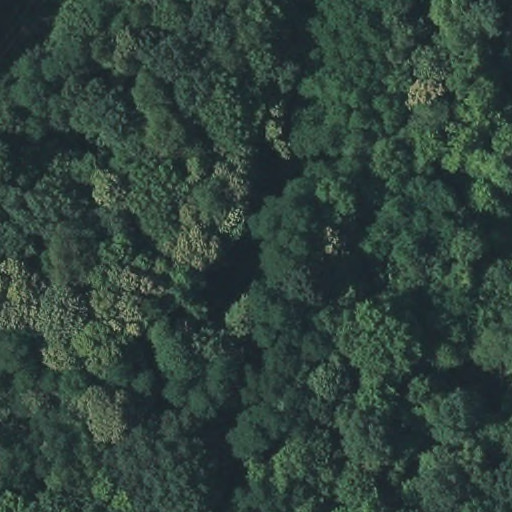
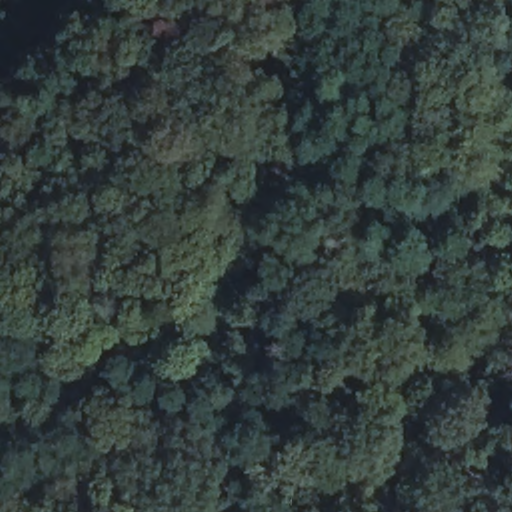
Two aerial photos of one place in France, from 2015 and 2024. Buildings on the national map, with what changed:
unchanged [(475,490),(512,477),(512,512),(484,512),(475,490)]
unchanged [(455,483),(462,507),(444,512),(433,512),(426,493),(455,483)]

